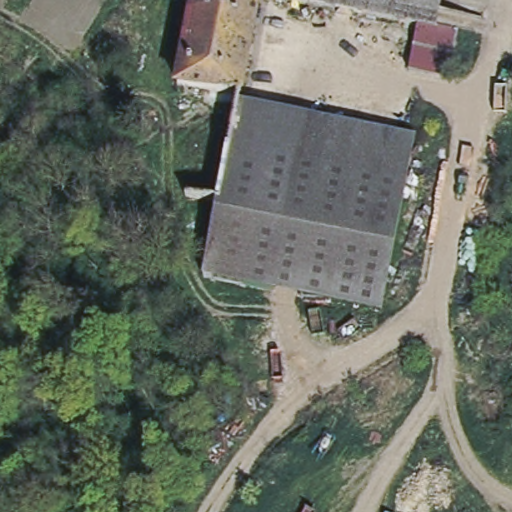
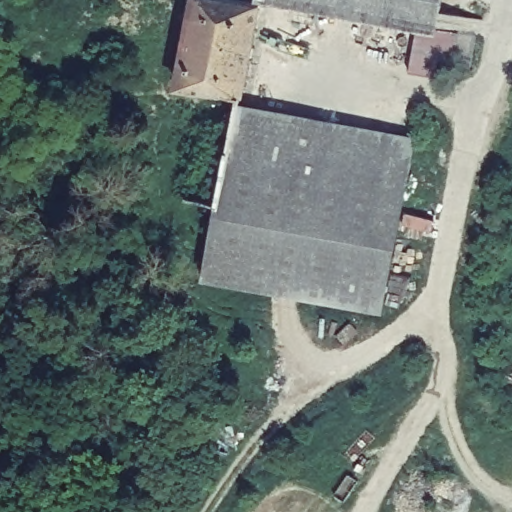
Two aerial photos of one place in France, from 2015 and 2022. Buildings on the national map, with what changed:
unchanged [(259,4),(243,96),(179,84),(195,0),(237,0),(259,4)]
unchanged [(438,28),(437,32),(418,28),(274,0),(443,0),(438,28)]
unchanged [(437,32),(438,28),(454,31),(445,79),(409,74),(418,28),(437,32)]
unchanged [(239,111),(415,145),(379,313),(206,280),(237,125),(239,111)]

